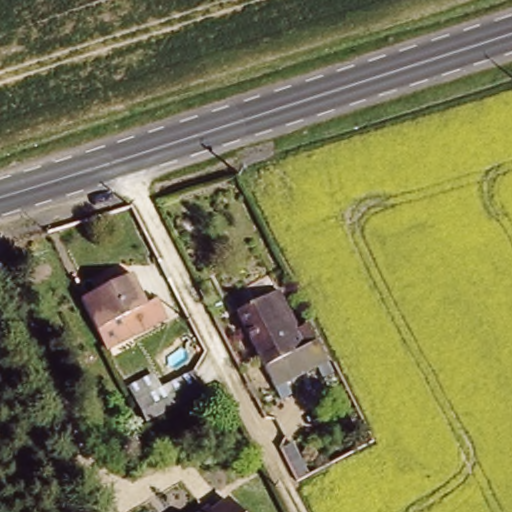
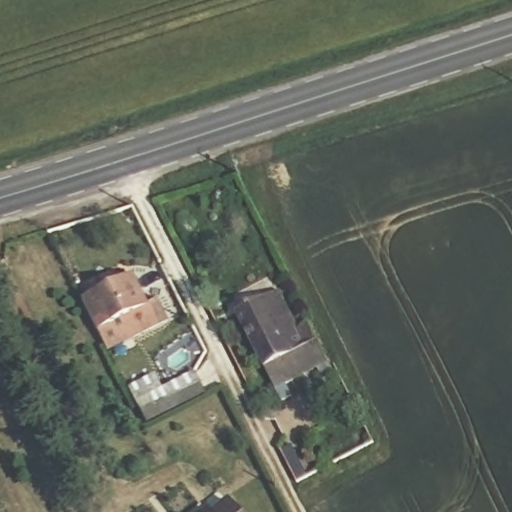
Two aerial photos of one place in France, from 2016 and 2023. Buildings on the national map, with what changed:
unchanged [(80,298),(131,274),(146,303),(156,298),(168,320),(107,351),(96,331),(80,298)]
unchanged [(268,370),(264,362),(242,318),(256,311),(284,297),(301,331),(308,329),(313,326),(316,324),(325,341),(319,344),(329,364),(313,372),(281,388),(271,368),(268,370)]
unchanged [(206,389),(208,394),(151,422),(144,410),(141,404),(135,393),(154,384),(154,385),(159,383),(159,382),(161,382),(166,392),(186,382),(199,375),(203,382),(206,389)]
unchanged [(238,501),(244,512),(216,512),(238,501)]

